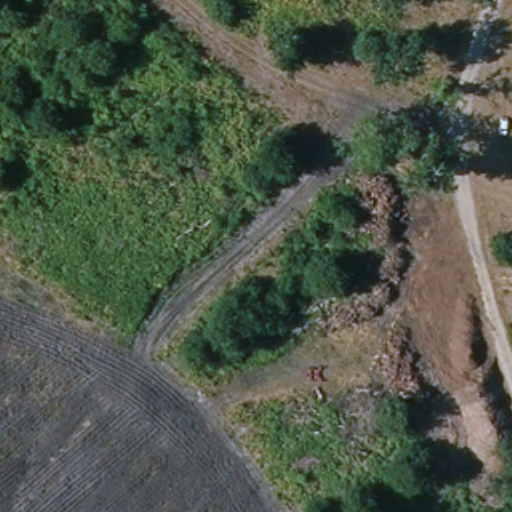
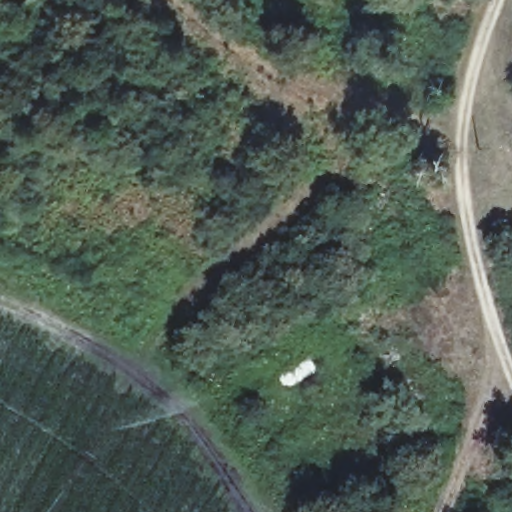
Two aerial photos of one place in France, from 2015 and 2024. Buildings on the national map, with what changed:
[]

